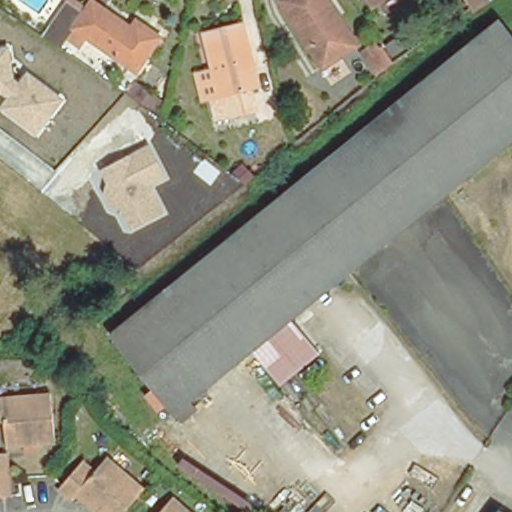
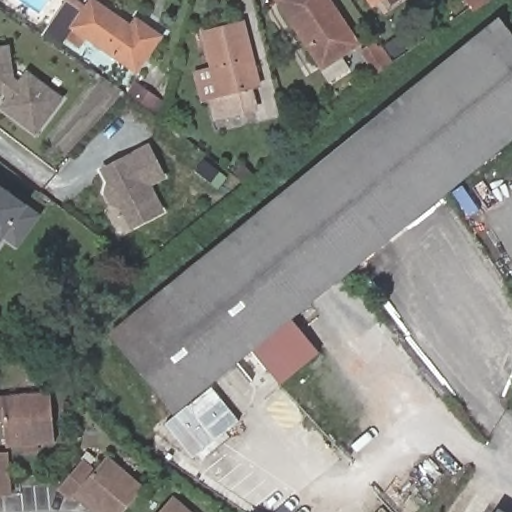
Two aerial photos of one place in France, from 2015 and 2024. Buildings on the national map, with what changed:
unchanged [(65,35),(59,44),(44,34),(66,0),(70,0),(83,9),(89,0),(95,0),(131,25),(136,17),(158,34),(134,67),(84,33),(77,44),(65,35)]
unchanged [(350,40),(316,64),(273,0),(324,0),(350,40)]
unchanged [(371,4),(368,0),(377,0),(371,4)]
unchanged [(489,6),(475,16),(464,0),(485,0),(489,6)]
unchanged [(512,41),(512,137),(290,319),(250,351),(162,423),(98,345),(495,20),(512,41)]
unchanged [(257,82),(249,84),(254,105),(215,115),(211,94),(201,96),(195,70),(212,66),(204,31),(240,22),(257,82)]
unchanged [(370,36),(379,50),(363,61),(354,46),(370,36)]
unchanged [(37,137),(0,110),(0,109),(9,97),(2,94),(0,94),(0,48),(11,46),(16,78),(21,82),(29,71),(66,99),(37,137)]
unchanged [(169,177),(152,186),(167,215),(131,233),(119,210),(108,205),(102,194),(107,184),(100,170),(151,142),(169,177)]
new [(27,205),(40,215),(17,247),(4,239),(0,244),(0,185),(27,205)]
unchanged [(317,355),(280,387),(250,351),(290,319),(317,355)]
new [(164,422),(209,385),(239,421),(193,459),(164,422)]
unchanged [(55,395),(59,442),(10,447),(7,420),(0,421),(0,401),(55,395)]
unchanged [(11,453),(15,497),(0,498),(0,455),(11,453)]
unchanged [(98,512),(80,496),(75,502),(62,492),(86,462),(100,474),(111,460),(148,490),(129,512),(98,512)]
unchanged [(198,512),(162,512),(177,494),(198,512)]
unchanged [(496,512),(497,510),(499,512),(496,512)]

